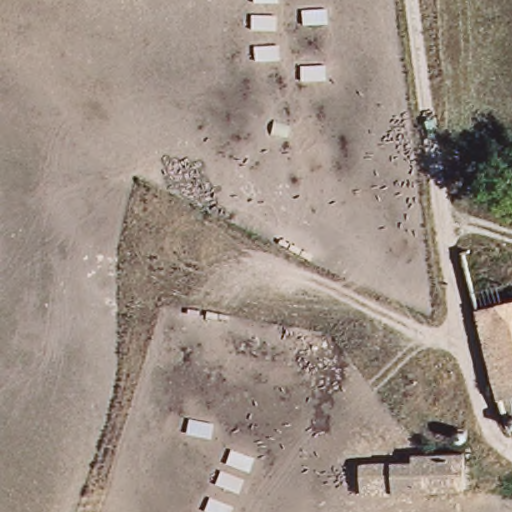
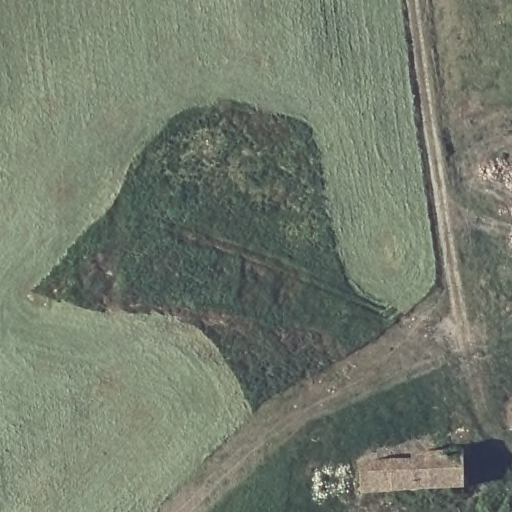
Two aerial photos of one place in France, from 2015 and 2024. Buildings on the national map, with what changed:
demolished [(467,289),(512,279),(512,395),(499,400),(467,289)]
unchanged [(359,461),(408,451),(452,442),(459,478),(365,493),(359,461)]

